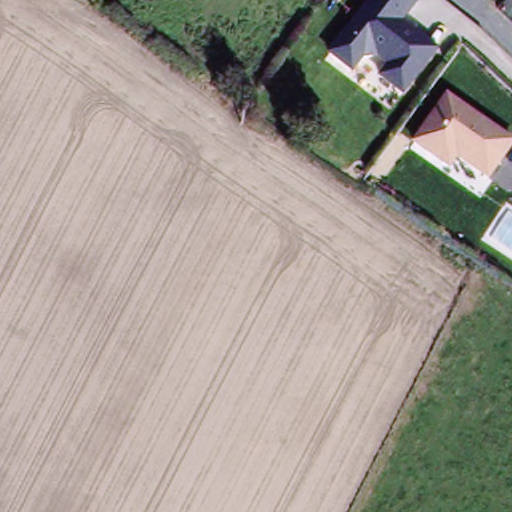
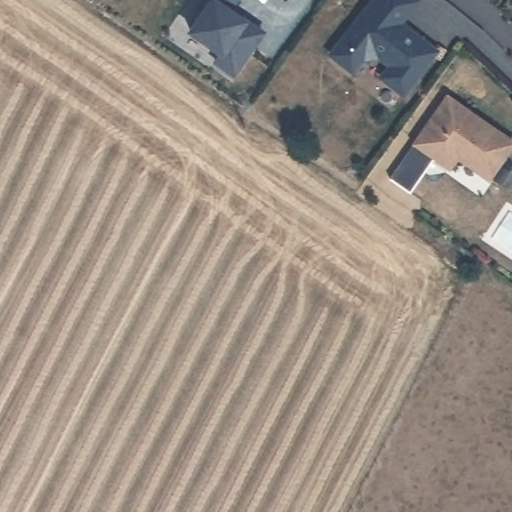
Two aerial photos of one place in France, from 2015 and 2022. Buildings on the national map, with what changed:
new [(228,9),(232,11),(231,14),(241,21),(243,18),(262,32),(233,75),(212,61),(219,52),(187,30),(207,0),(234,0),(228,9)]
unchanged [(405,22),(439,50),(399,96),(375,76),(383,63),(377,58),(364,56),(353,74),(326,52),(366,0),(422,0),(405,22)]
unchanged [(512,137),(512,145),(485,180),(462,163),(454,173),(411,138),(447,91),(512,137)]

